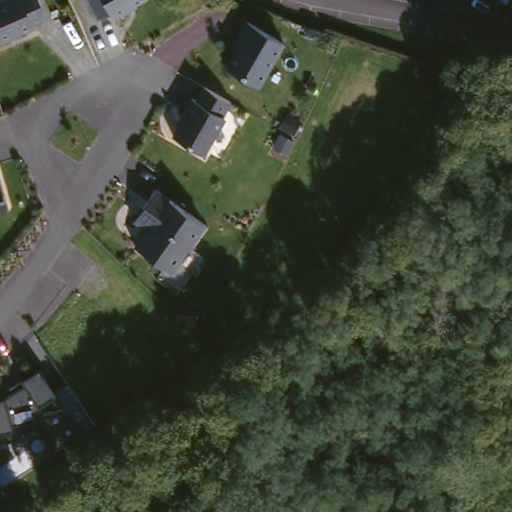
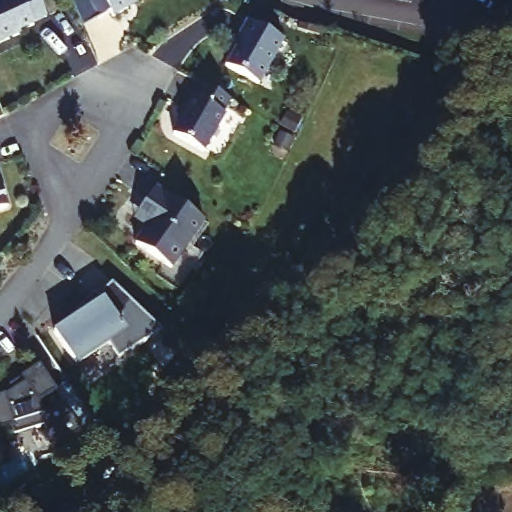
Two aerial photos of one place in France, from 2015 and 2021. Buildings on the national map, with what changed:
unchanged [(52,23),(0,47),(0,0),(42,0),(52,23)]
unchanged [(122,10),(124,12),(109,20),(106,15),(94,21),(82,0),(141,0),(122,10)]
unchanged [(282,45),(257,88),(225,69),(241,41),(239,39),(247,24),(282,45)]
unchanged [(230,107),(202,154),(169,131),(197,89),(230,107)]
unchanged [(0,212),(0,186),(7,210),(0,212)]
unchanged [(204,228),(172,272),(136,244),(150,226),(136,217),(155,193),(204,228)]
new [(72,364),(53,335),(76,320),(73,316),(93,294),(97,298),(111,284),(160,333),(117,361),(107,347),(75,368),(72,364)]
unchanged [(39,406),(42,420),(14,425),(15,433),(0,437),(0,400),(6,399),(5,390),(35,369),(55,395),(39,406)]

